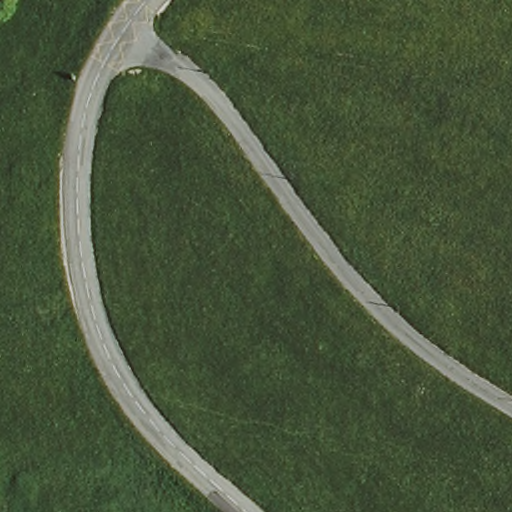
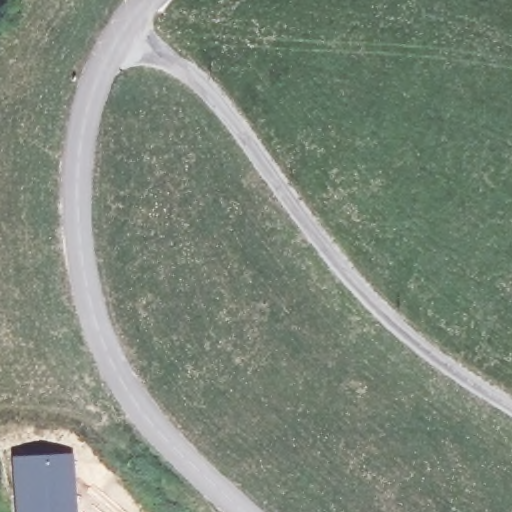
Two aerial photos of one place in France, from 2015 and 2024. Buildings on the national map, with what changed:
new [(73,452),(77,512),(13,512),(11,456),(73,452)]

